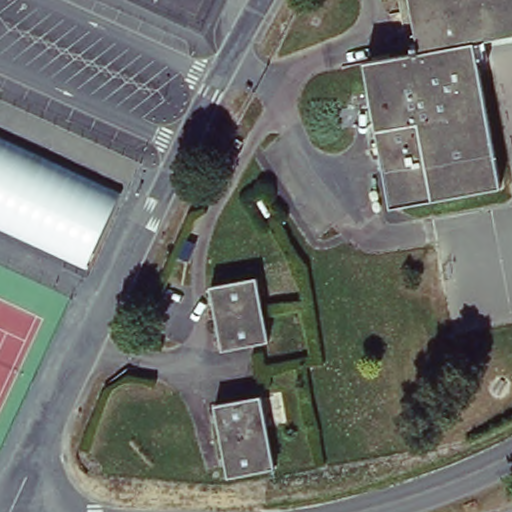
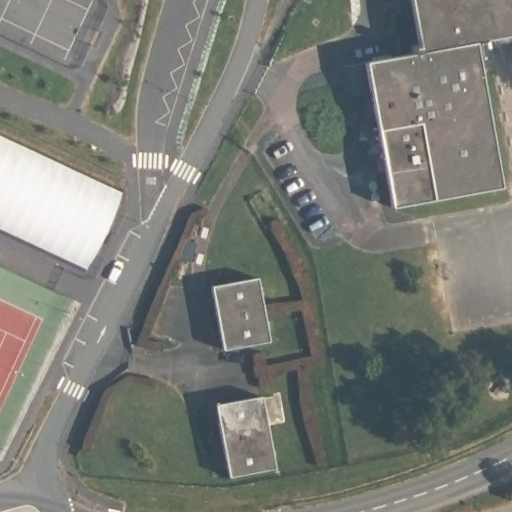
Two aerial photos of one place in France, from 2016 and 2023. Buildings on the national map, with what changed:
unchanged [(415,53),(403,0),(512,0),(512,39),(473,48),(505,186),(399,211),(368,65),(415,53)]
unchanged [(119,190),(81,271),(0,237),(0,138),(119,190)]
unchanged [(213,294),(255,283),(270,343),(226,353),(213,294)]
unchanged [(213,409),(258,399),(274,468),(229,478),(213,409)]

